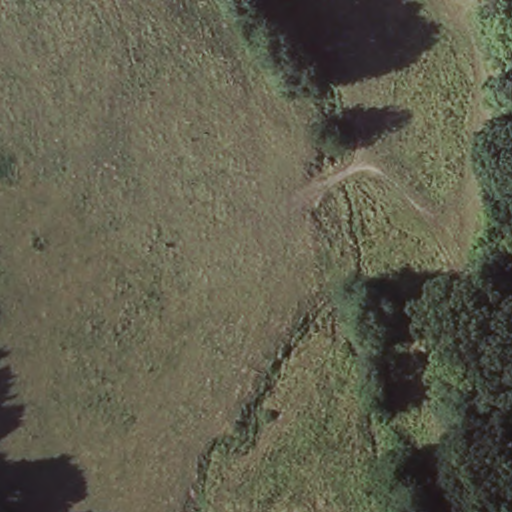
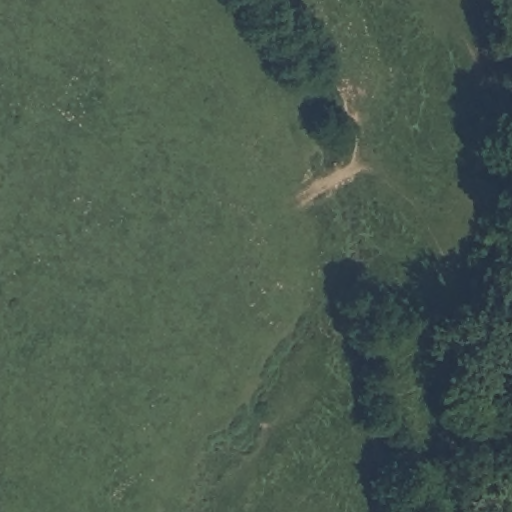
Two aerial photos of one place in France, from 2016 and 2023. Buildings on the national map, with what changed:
[]

